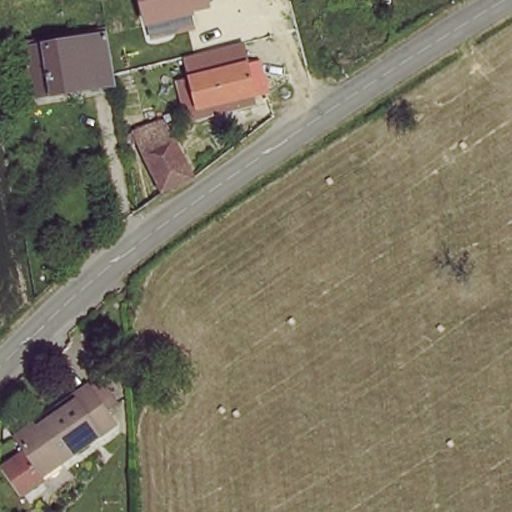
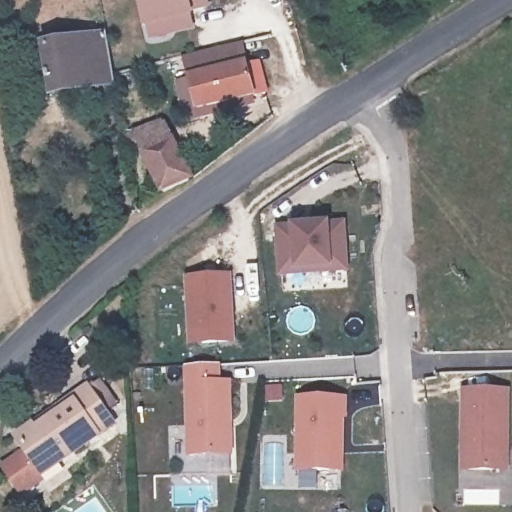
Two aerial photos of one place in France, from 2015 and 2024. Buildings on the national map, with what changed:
unchanged [(209,7),(193,11),(196,29),(152,39),(148,26),(144,27),(138,0),(208,0),(209,7)]
unchanged [(186,81),(179,56),(229,41),(237,68),(186,81)]
unchanged [(26,53),(44,51),(105,42),(113,89),(50,98),(32,101),(26,53)]
unchanged [(255,63),(263,94),(195,115),(184,82),(186,81),(237,68),(255,63)]
unchanged [(142,132),(170,123),(199,174),(172,190),(142,132)]
new [(327,219),(328,225),(344,223),(347,264),(282,268),(279,223),(327,219)]
new [(229,280),(230,346),(186,346),(186,281),(229,280)]
new [(219,360),(220,379),(229,378),(233,449),(192,450),(189,362),(219,360)]
new [(508,383),(509,463),(466,463),(467,384),(508,383)]
unchanged [(93,398),(104,391),(120,417),(111,425),(117,435),(22,498),(0,467),(24,451),(20,443),(40,430),(80,401),(90,395),(93,398)]
new [(346,393),(346,411),(344,411),(343,464),(301,464),(302,393),(346,393)]

